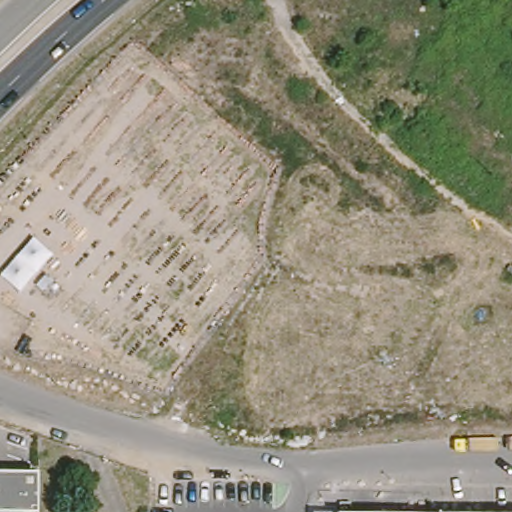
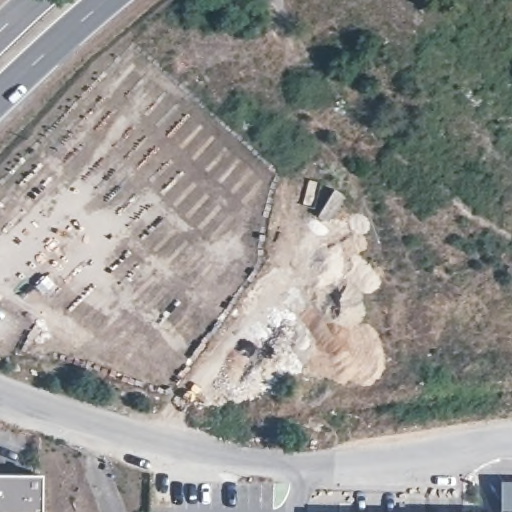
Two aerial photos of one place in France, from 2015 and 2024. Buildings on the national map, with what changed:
unchanged [(39,473),(39,512),(0,512),(0,473),(39,473)]
new [(512,480),(512,512),(498,512),(499,480),(512,480)]

